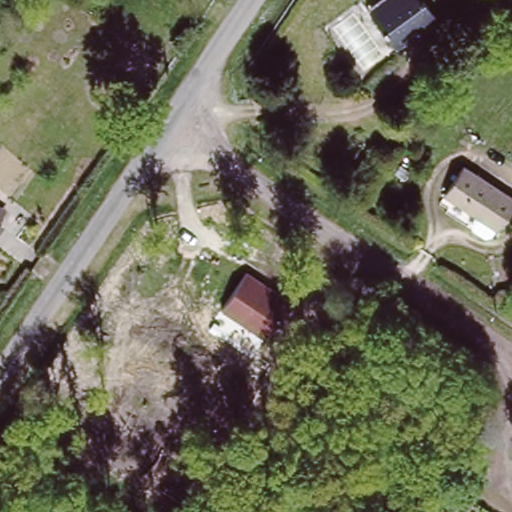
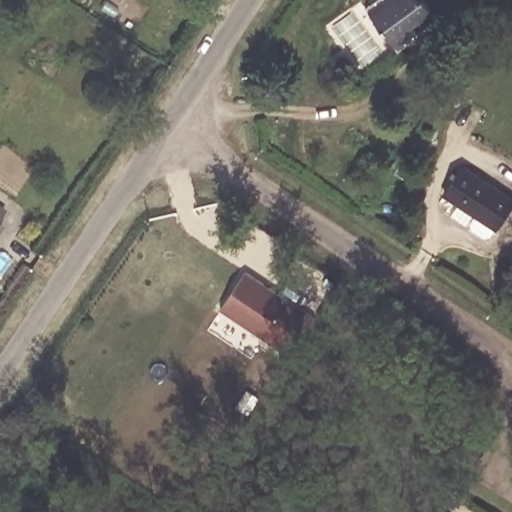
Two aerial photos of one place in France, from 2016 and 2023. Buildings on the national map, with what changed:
unchanged [(397,45),(371,11),(365,4),(370,0),(426,0),(437,16),(397,45)]
unchanged [(512,198),(512,200),(495,226),(444,192),(463,165),(512,198)]
unchanged [(5,211),(0,220),(0,207),(5,211)]
unchanged [(3,227),(0,232),(0,224),(3,227)]
unchanged [(243,272),(293,303),(265,340),(219,308),(243,272)]

